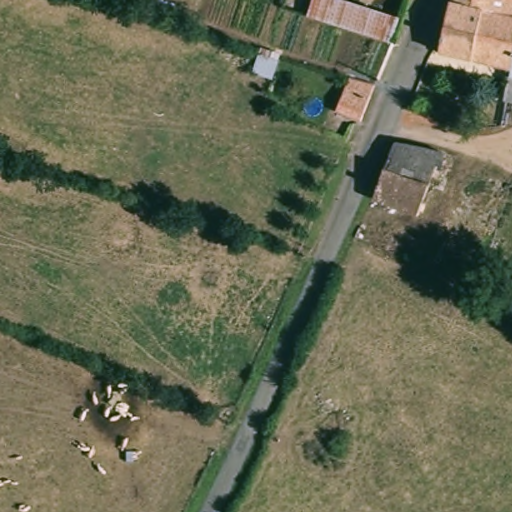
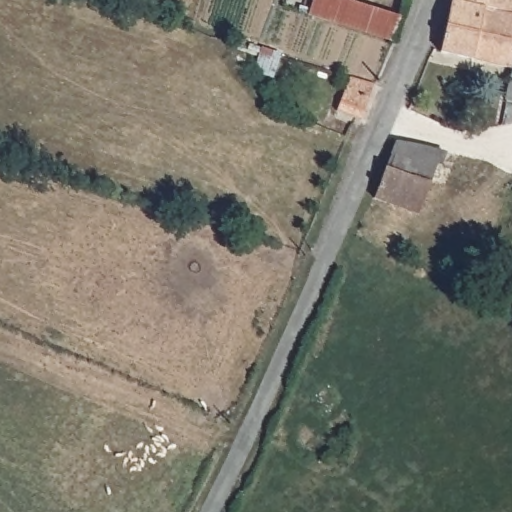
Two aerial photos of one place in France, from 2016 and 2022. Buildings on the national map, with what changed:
unchanged [(391,41),(306,14),(311,0),(347,0),(401,18),(391,41)]
unchanged [(449,0),(456,0),(512,14),(512,66),(430,46),(449,0)]
unchanged [(512,0),(512,14),(456,0),(512,0)]
unchanged [(450,150),(425,214),(370,199),(397,132),(450,150)]

